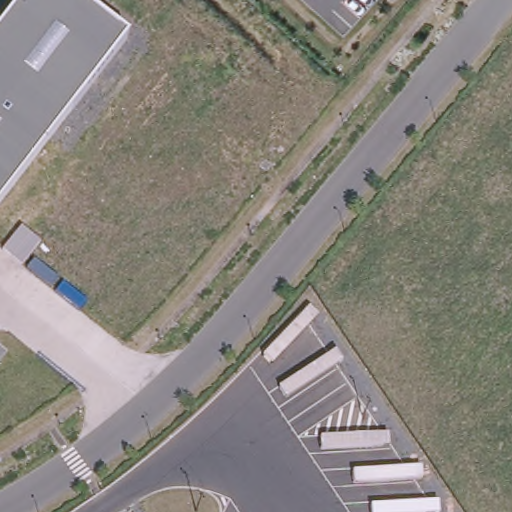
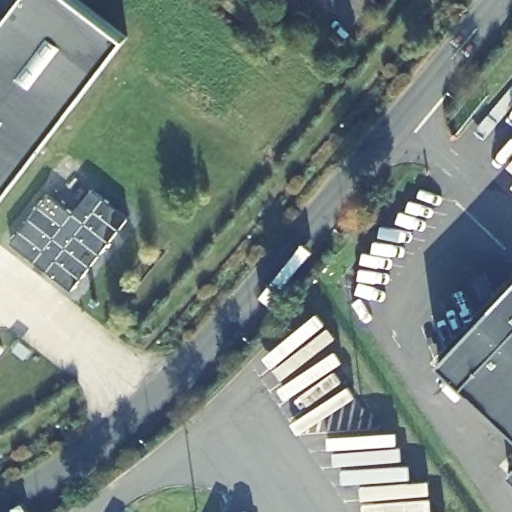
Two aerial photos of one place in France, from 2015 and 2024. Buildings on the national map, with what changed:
unchanged [(0,22),(17,0),(78,0),(125,35),(0,195),(0,22)]
new [(73,212),(92,187),(130,215),(71,289),(11,242),(49,194),(73,212)]
new [(512,290),(512,445),(436,377),(512,290)]
new [(512,476),(512,488),(506,482),(512,476)]

